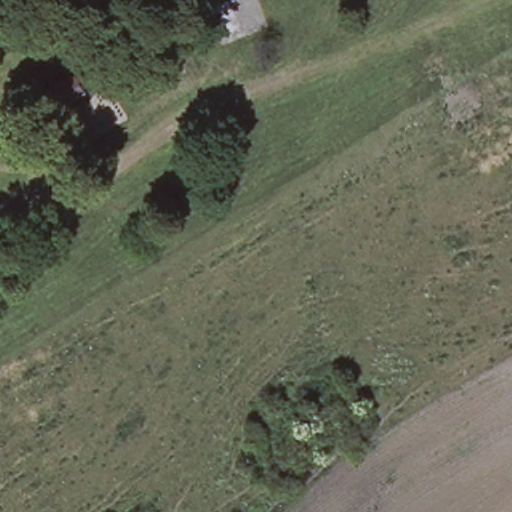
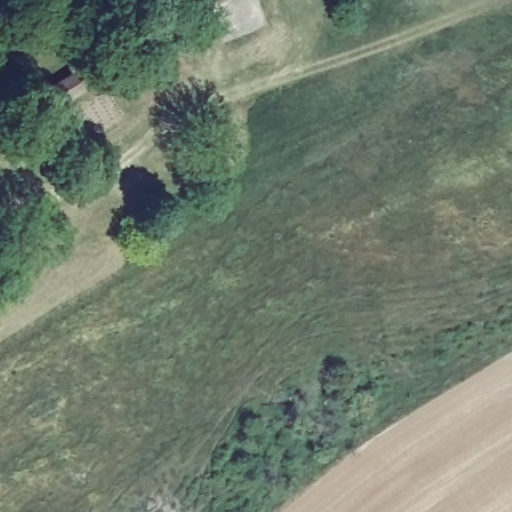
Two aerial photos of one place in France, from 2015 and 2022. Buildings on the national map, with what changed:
unchanged [(62,89),(82,77),(91,90),(70,101),(62,89)]

